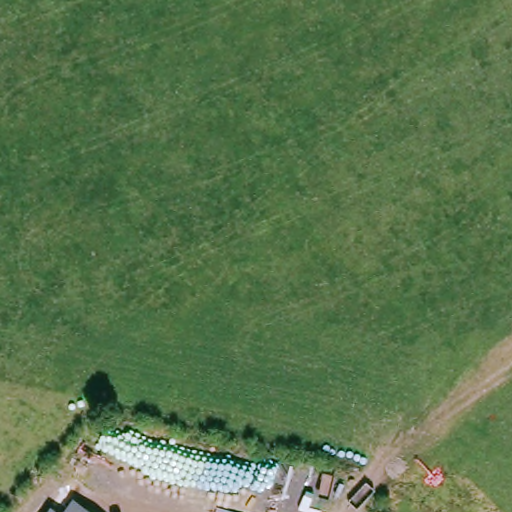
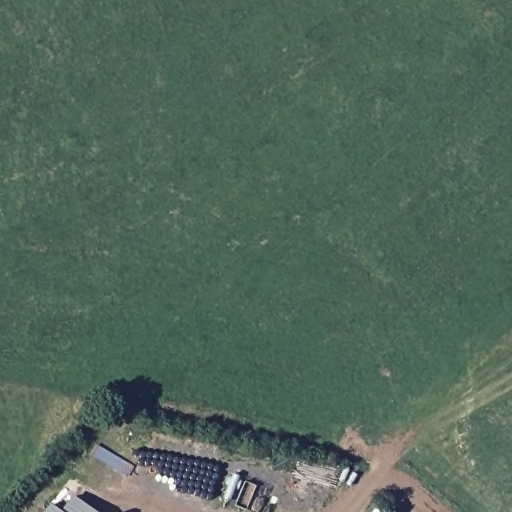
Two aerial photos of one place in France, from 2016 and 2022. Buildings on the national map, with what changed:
unchanged [(94,512),(61,512),(73,496),(94,512)]
unchanged [(61,512),(45,512),(50,505),(61,512)]

